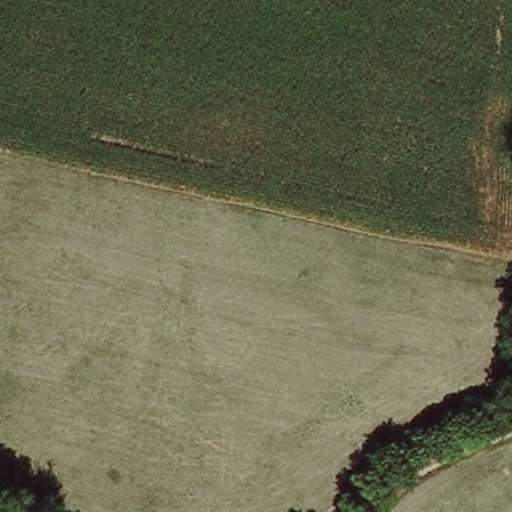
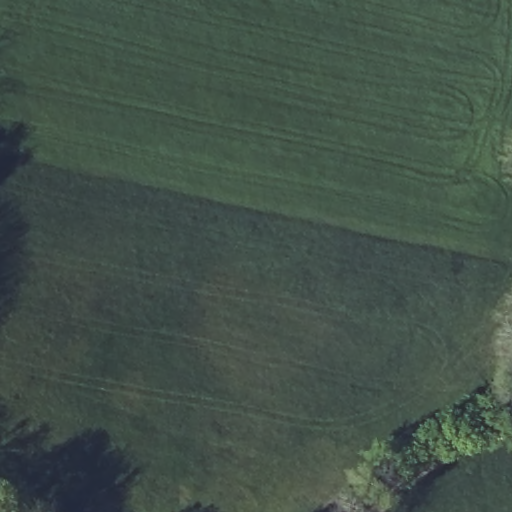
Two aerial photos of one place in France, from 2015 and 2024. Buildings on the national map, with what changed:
[]

